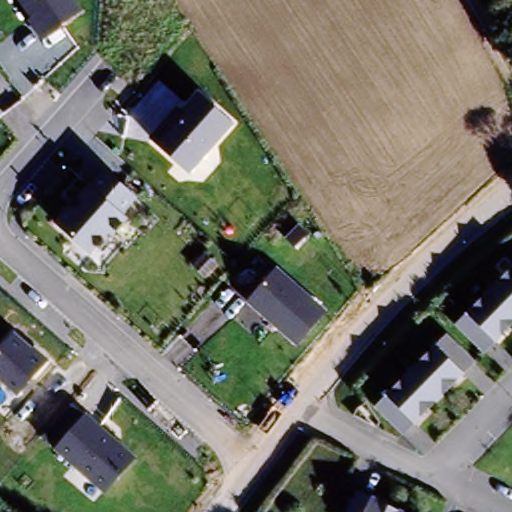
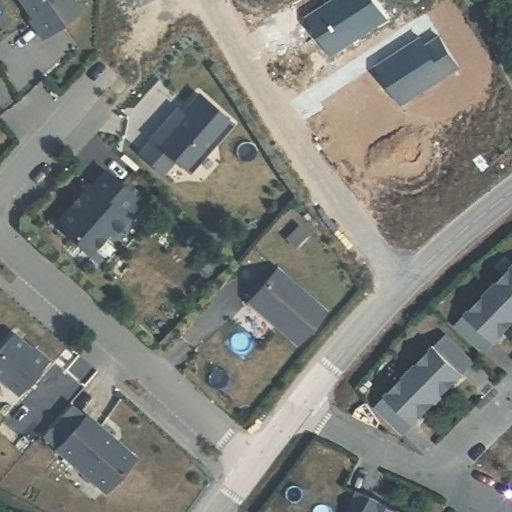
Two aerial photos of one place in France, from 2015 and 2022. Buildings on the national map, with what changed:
unchanged [(43,40),(17,0),(71,0),(81,15),(43,40)]
new [(375,0),(387,18),(332,53),(308,17),(334,0),(375,0)]
new [(421,38),(426,46),(440,37),(459,67),(401,104),(377,66),(421,38)]
unchanged [(189,175),(147,138),(176,106),(180,111),(198,92),(233,124),(189,175)]
unchanged [(89,183),(104,168),(135,198),(121,213),(126,219),(89,257),(52,222),(89,183)]
unchanged [(275,266),(327,311),(298,347),(245,303),(275,266)]
unchanged [(512,327),(491,347),(460,323),(512,270),(512,327)]
unchanged [(13,331),(32,348),(34,346),(50,361),(18,396),(0,381),(0,346),(13,331)]
unchanged [(480,359),(409,436),(377,401),(451,332),(480,359)]
unchanged [(138,458),(106,494),(53,449),(86,413),(138,458)]
unchanged [(411,512),(353,512),(362,489),(411,512)]

